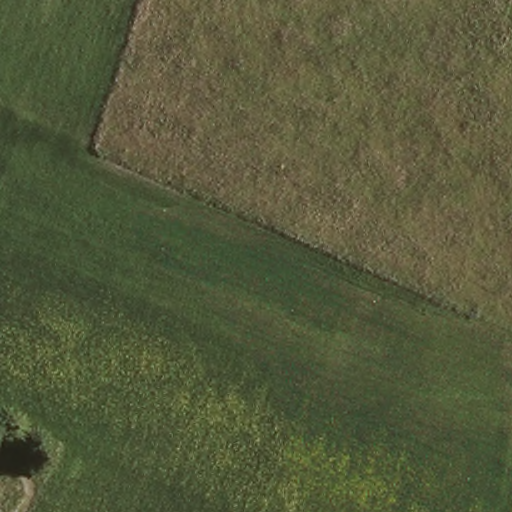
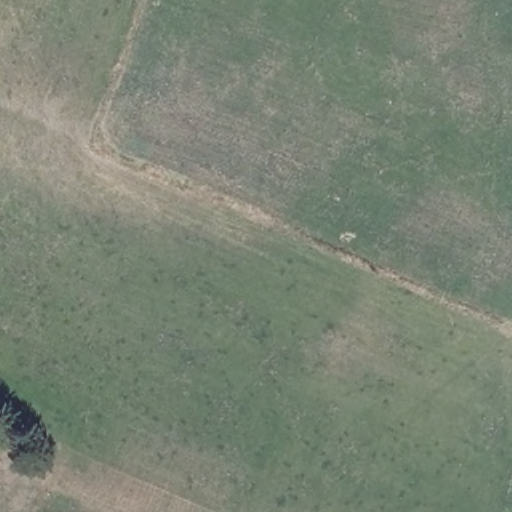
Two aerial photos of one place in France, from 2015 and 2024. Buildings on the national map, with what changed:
[]

